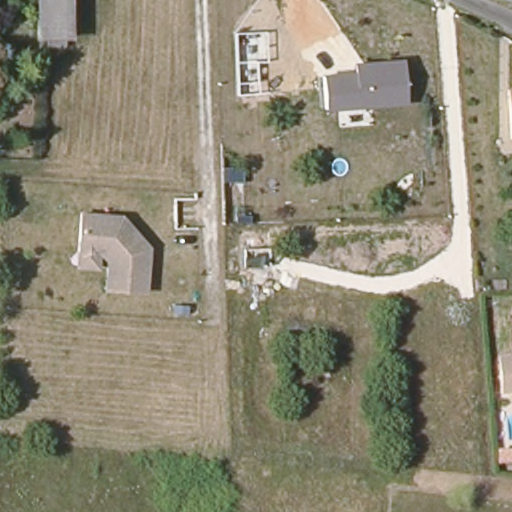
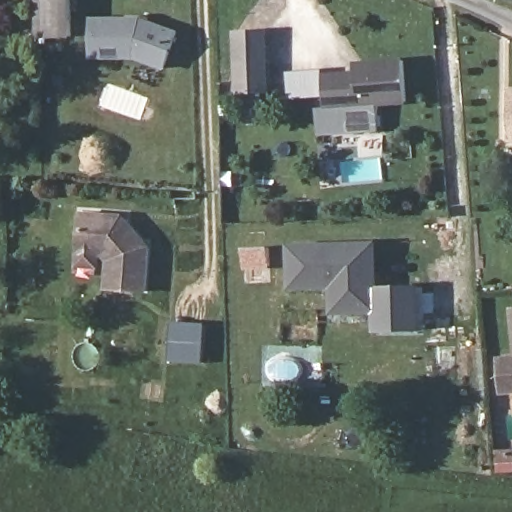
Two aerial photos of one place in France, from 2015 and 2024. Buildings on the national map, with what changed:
unchanged [(74,40),(42,41),(41,0),(74,0),(74,40)]
new [(145,19),(182,30),(168,71),(137,61),(92,58),(94,19),(145,19)]
unchanged [(268,92),(238,94),(236,32),(265,31),(267,61),(268,92)]
unchanged [(403,58),(407,104),(381,105),(382,133),(322,136),(323,109),(321,74),(355,72),(353,62),(403,58)]
unchanged [(511,93),(512,93),(512,109),(511,93)]
unchanged [(114,261),(109,255),(102,255),(102,266),(83,265),(87,213),(127,217),(148,242),(147,248),(154,249),(151,292),(111,289),(114,261)]
new [(381,244),(382,289),(425,290),(425,333),(381,333),(381,313),(337,314),(337,288),(295,290),(296,247),(381,244)]
new [(245,248),(270,248),(270,266),(245,267),(245,248)]
new [(208,326),(206,363),(174,361),(177,325),(208,326)]
unchanged [(502,353),(512,353),(512,386),(502,386),(502,353)]

